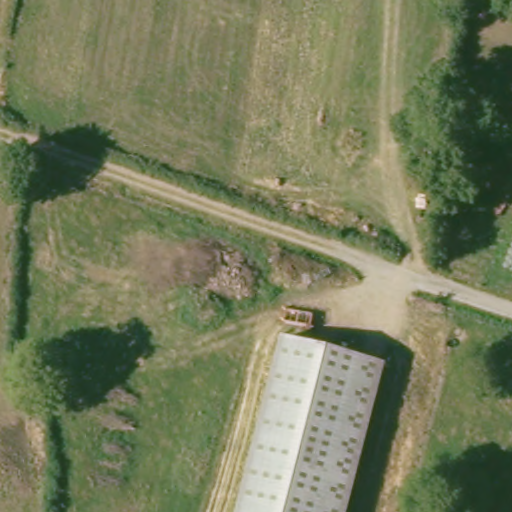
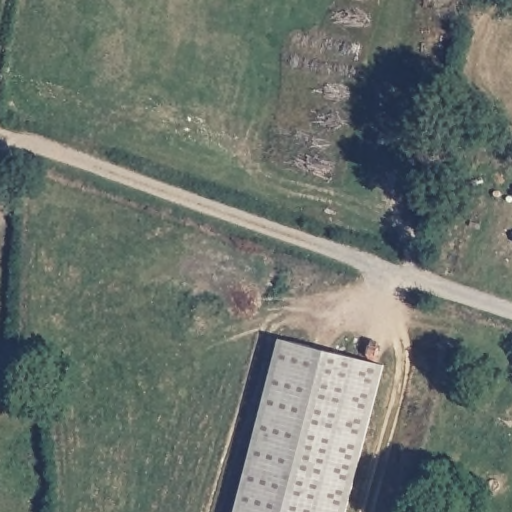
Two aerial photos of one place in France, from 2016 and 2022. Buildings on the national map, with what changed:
unchanged [(351,512),(237,512),(281,339),(388,365),(351,512)]

